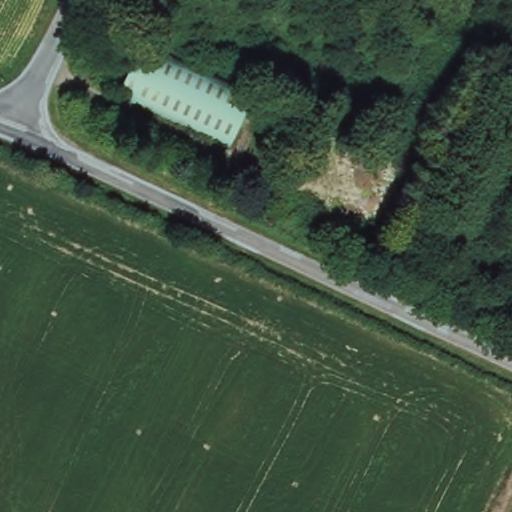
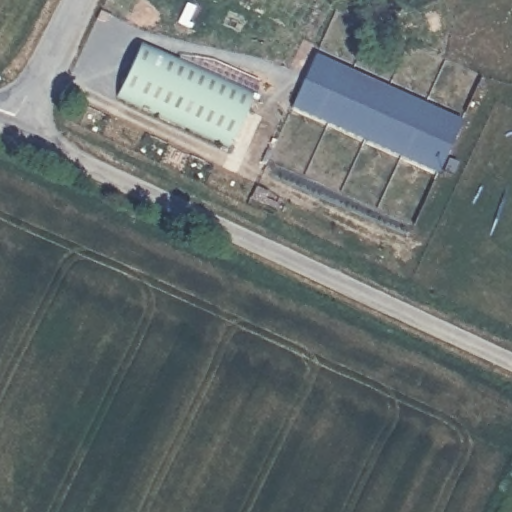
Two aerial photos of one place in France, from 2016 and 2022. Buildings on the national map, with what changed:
unchanged [(142,36),(252,91),(225,146),(115,91),(142,36)]
new [(293,106),(315,56),(461,124),(438,173),(293,106)]

